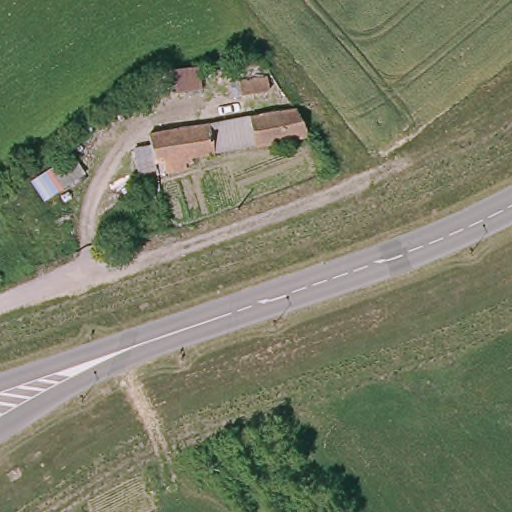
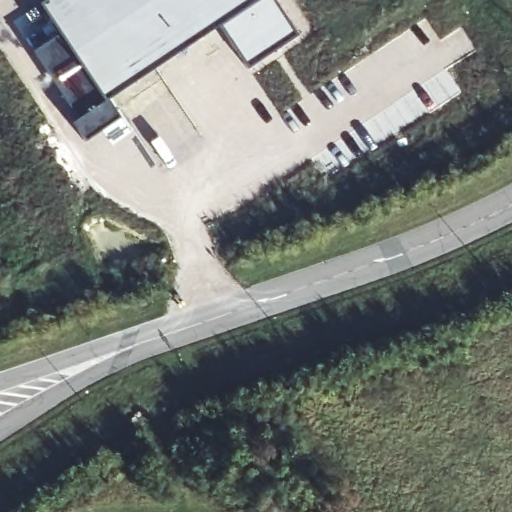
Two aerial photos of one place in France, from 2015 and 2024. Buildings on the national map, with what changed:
new [(247,68),(219,26),(108,100),(119,118),(83,142),(71,125),(77,120),(29,53),(58,34),(39,4),(45,0),(273,0),(297,35),(247,68)]
demolished [(225,90),(219,78),(260,60),(267,71),(225,90)]
demolished [(192,77),(169,88),(159,67),(184,62),(192,77)]
demolished [(190,156),(190,164),(182,164),(182,170),(155,172),(154,166),(131,168),(130,143),(148,142),(148,127),(294,102),(307,135),(190,156)]
demolished [(44,201),(28,180),(72,150),(86,170),(44,201)]

